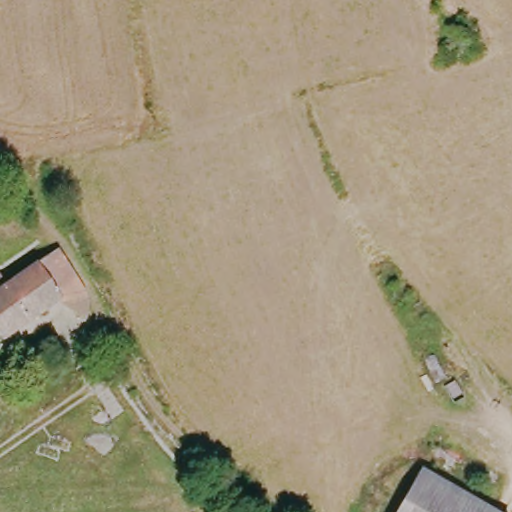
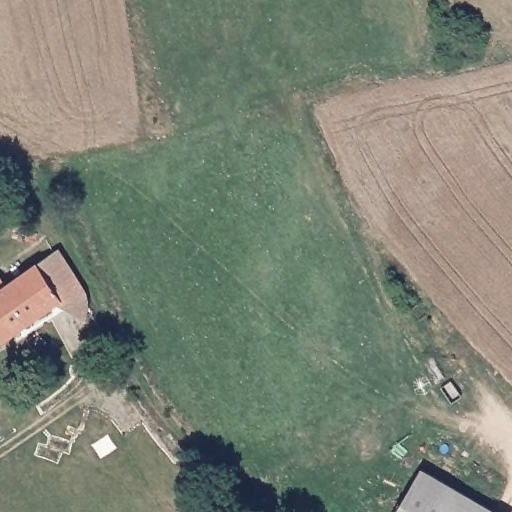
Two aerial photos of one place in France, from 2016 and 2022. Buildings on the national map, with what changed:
unchanged [(0,334),(0,284),(54,249),(87,301),(81,316),(55,306),(0,334)]
unchanged [(491,512),(399,512),(421,472),(491,512)]

